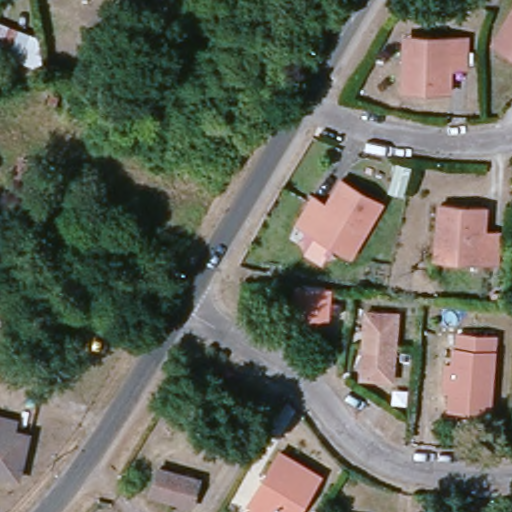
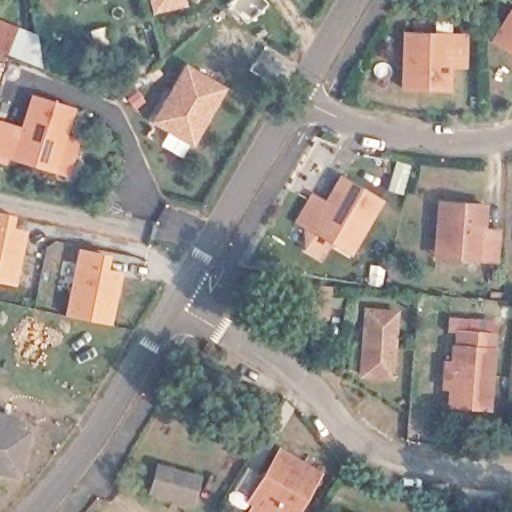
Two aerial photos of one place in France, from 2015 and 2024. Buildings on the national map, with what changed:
new [(186,6),(152,13),(149,0),(185,0),(186,6)]
new [(231,0),(265,0),(269,5),(245,25),(226,5),(231,0)]
unchanged [(498,41),(489,36),(512,2),(512,53),(498,41)]
unchanged [(8,50),(0,48),(0,20),(20,27),(8,50)]
unchanged [(469,67),(449,65),(444,100),(401,96),(404,60),(407,51),(409,29),(419,30),(472,34),(469,67)]
new [(143,96),(133,105),(126,97),(119,99),(112,91),(146,61),(150,66),(136,89),(143,96)]
new [(228,87),(194,146),(149,124),(184,62),(228,87)]
new [(31,94),(76,108),(69,136),(80,140),(69,178),(0,157),(0,120),(20,126),(31,94)]
unchanged [(347,250),(299,226),(317,199),(327,205),(345,169),(388,190),(372,225),(356,253),(347,250)]
unchanged [(433,260),(437,225),(439,191),(485,197),(482,232),(499,235),(496,267),(444,261),(442,261),(433,260)]
new [(13,227),(28,230),(17,285),(0,282),(0,212),(15,215),(13,227)]
new [(109,256),(108,269),(122,271),(112,325),(65,315),(79,248),(109,256)]
unchanged [(299,288),(331,289),(330,318),(297,317),(299,288)]
unchanged [(398,310),(392,377),(359,375),(366,307),(398,310)]
unchanged [(444,359),(454,360),(458,332),(498,335),(492,407),(450,403),(452,387),(441,385),(444,359)]
unchanged [(26,472),(0,466),(0,423),(40,433),(26,472)]
unchanged [(299,512),(251,512),(254,507),(247,503),(261,479),(279,450),(322,475),(299,512)]
unchanged [(204,499),(170,491),(172,480),(207,486),(204,499)]

